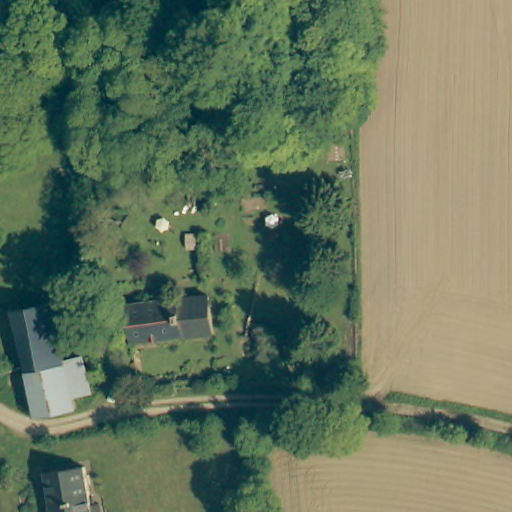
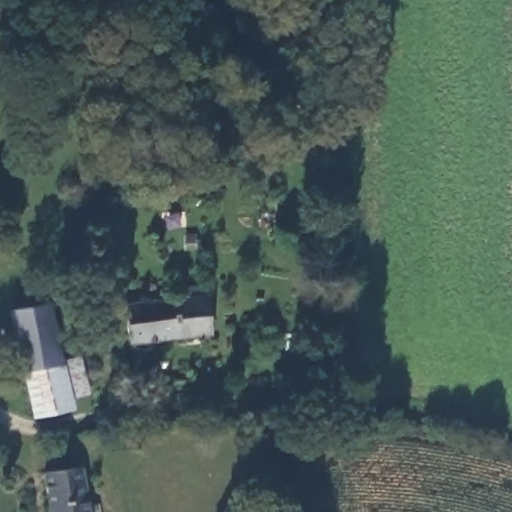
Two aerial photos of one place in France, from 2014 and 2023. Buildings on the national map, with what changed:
unchanged [(133,342),(129,302),(207,295),(213,335),(133,342)]
unchanged [(16,312),(56,304),(69,358),(68,358),(28,366),(16,312)]
unchanged [(85,355),(93,397),(77,401),(79,413),(40,421),(39,415),(28,366),(68,358),(69,358),(85,355)]
unchanged [(50,507),(46,472),(86,468),(88,504),(50,507)]
unchanged [(89,512),(50,512),(50,507),(88,504),(89,512)]

